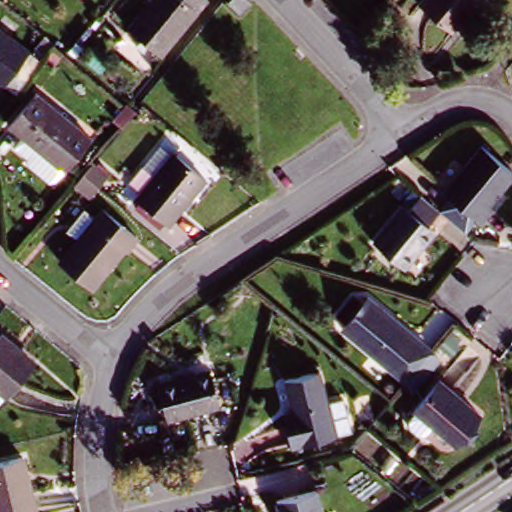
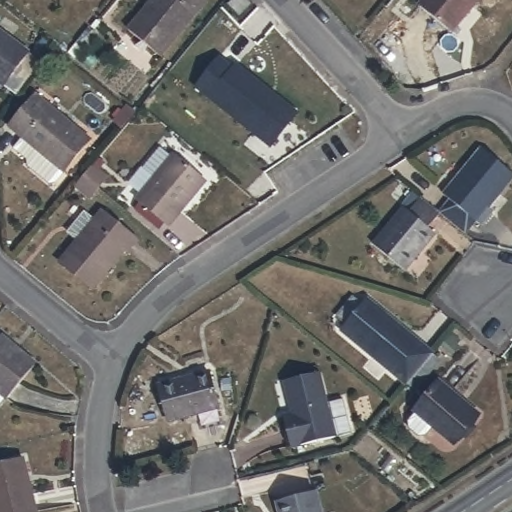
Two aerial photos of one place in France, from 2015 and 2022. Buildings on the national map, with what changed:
unchanged [(136,45),(142,40),(128,29),(152,0),(205,0),(160,54),(147,43),(145,51),(136,45)]
unchanged [(233,0),(249,0),(252,2),(241,13),(230,3),(233,0)]
unchanged [(424,0),(480,0),(454,32),(420,5),(424,0)]
unchanged [(29,82),(21,94),(17,91),(0,78),(0,28),(42,59),(57,41),(29,82)]
new [(215,55),(229,66),(232,62),(265,89),(263,91),(267,94),(269,92),(292,112),(265,145),(191,84),(215,55)]
unchanged [(16,132),(2,122),(4,119),(29,87),(85,131),(51,177),(45,177),(25,161),(22,159),(22,153),(8,142),(16,132)]
unchanged [(110,115),(122,99),(132,106),(119,122),(110,115)]
unchanged [(484,145),(512,168),(512,177),(489,204),(495,209),(484,223),(446,193),(484,145)]
unchanged [(140,214),(145,207),(140,203),(160,180),(149,171),(167,150),(212,184),(175,229),(170,225),(164,232),(140,214)]
unchanged [(67,183),(77,171),(87,160),(102,172),(92,184),(82,195),(67,183)]
unchanged [(435,211),(440,214),(428,229),(437,236),(406,272),(376,248),(406,210),(405,209),(416,195),(420,199),(434,210),(435,211)]
unchanged [(109,205),(143,233),(132,247),(129,244),(96,284),(65,259),(109,205)]
unchanged [(372,301),(439,355),(412,387),(345,332),(351,326),(342,317),(357,299),(367,306),(372,301)]
unchanged [(25,342),(22,345),(42,361),(15,393),(14,392),(8,399),(0,393),(0,344),(11,331),(25,342)]
unchanged [(291,414),(283,382),(320,373),(327,404),(343,401),(351,437),(335,440),(290,451),(284,427),(281,416),(291,414)]
unchanged [(164,384),(217,375),(224,411),(170,420),(164,384)]
unchanged [(463,443),(423,411),(449,379),(489,412),(463,443)]
unchanged [(28,455),(41,507),(19,512),(0,512),(0,462),(28,455)]
unchanged [(326,512),(283,512),(280,499),(322,491),(326,512)]

